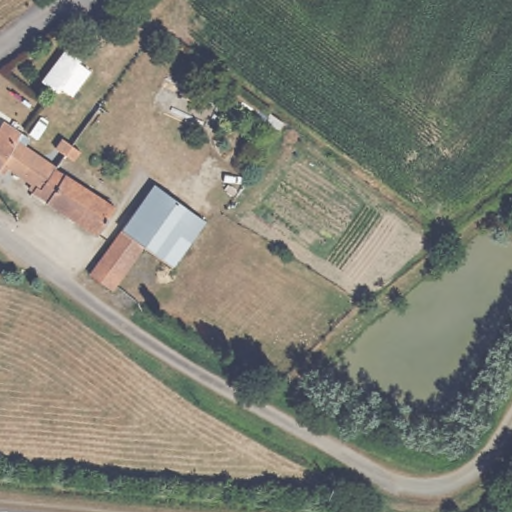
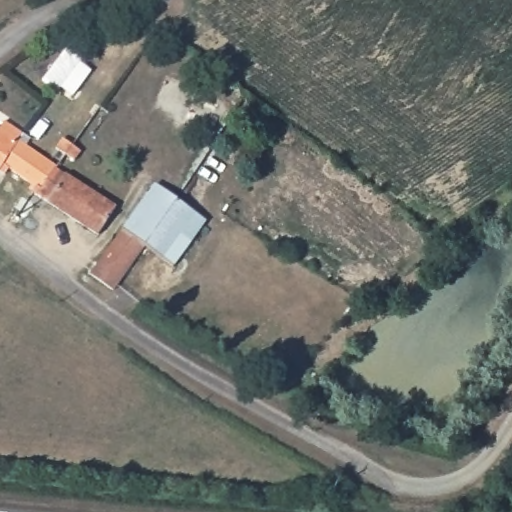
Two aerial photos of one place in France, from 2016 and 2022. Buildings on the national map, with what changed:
unchanged [(52,91),(91,112),(79,130),(41,109),(52,91)]
unchanged [(18,134),(20,131),(31,139),(26,147),(56,168),(40,191),(35,187),(32,191),(28,188),(30,184),(7,169),(2,175),(0,173),(0,126),(2,124),(18,134)]
unchanged [(47,201),(49,197),(42,193),(37,200),(30,196),(32,191),(35,187),(40,191),(56,168),(85,188),(67,214),(47,201)]
unchanged [(172,268),(145,248),(112,291),(89,273),(111,244),(154,184),(206,222),(172,268)]
unchanged [(67,214),(85,188),(115,207),(97,234),(67,214)]

